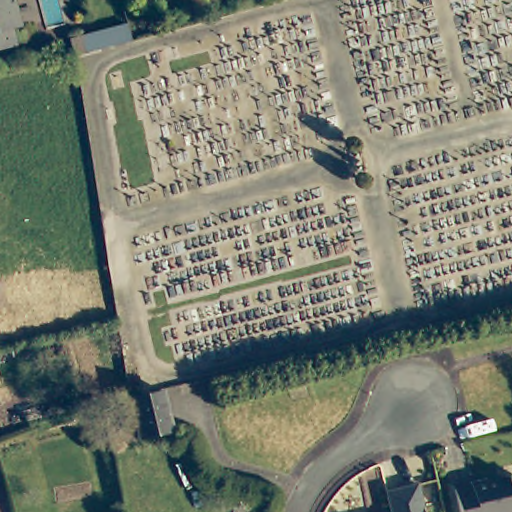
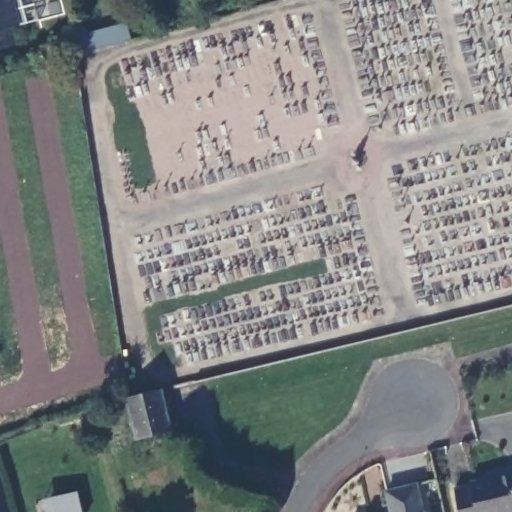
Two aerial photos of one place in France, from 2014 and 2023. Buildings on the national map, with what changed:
unchanged [(12,30),(17,49),(0,54),(0,0),(17,0),(27,28),(12,30)]
unchanged [(133,45),(74,61),(69,42),(128,25),(133,45)]
unchanged [(128,400),(165,391),(175,431),(138,439),(129,405),(128,400)]
unchanged [(475,484),(491,481),(492,484),(512,480),(512,512),(460,512),(456,493),(476,488),(475,484)]
unchanged [(421,512),(390,512),(386,495),(416,488),(421,512)]
new [(41,501),(77,492),(82,512),(44,512),(41,501)]

